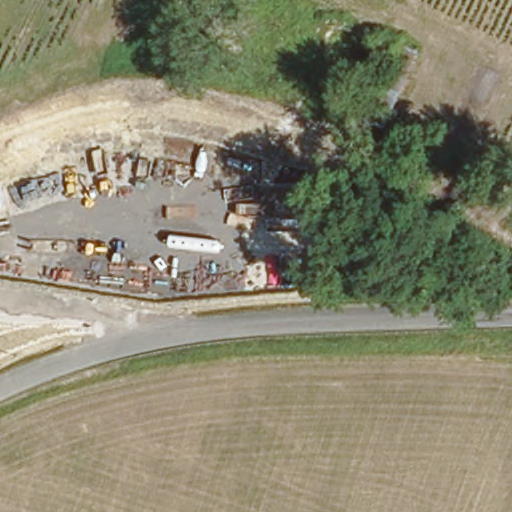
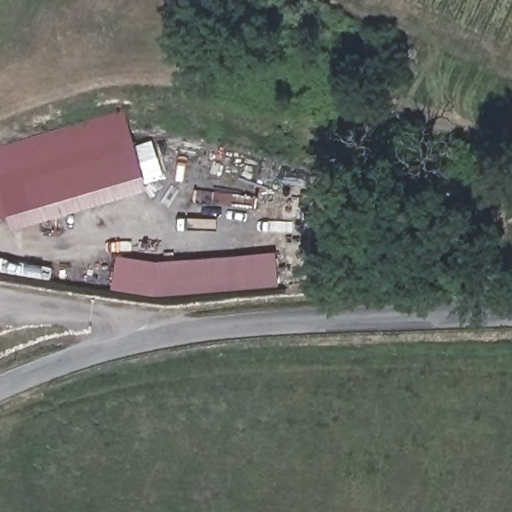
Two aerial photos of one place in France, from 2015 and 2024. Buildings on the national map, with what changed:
unchanged [(412,45),(422,48),(389,128),(375,122),(405,40),(412,45)]
new [(145,191),(14,230),(10,217),(0,220),(0,147),(125,111),(145,191)]
new [(280,284),(156,295),(112,287),(119,256),(159,262),(276,252),(280,284)]

